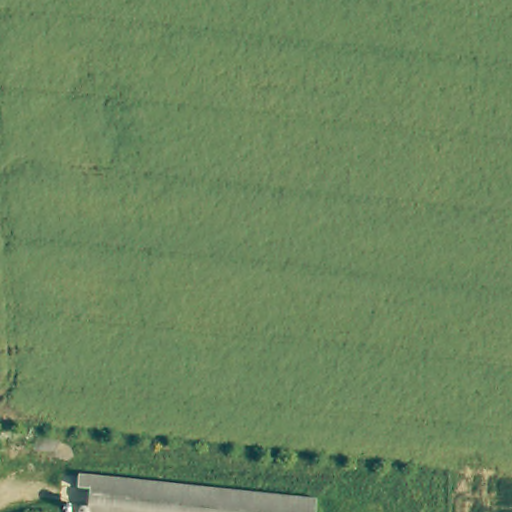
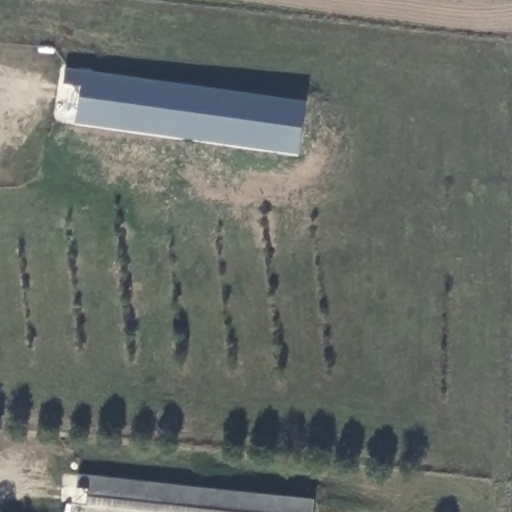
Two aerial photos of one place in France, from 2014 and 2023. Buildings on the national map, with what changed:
new [(306,99),(298,154),(75,121),(80,86),(64,84),(66,67),(306,99)]
unchanged [(311,505),(310,512),(85,512),(88,492),(76,490),(76,478),(311,505)]

